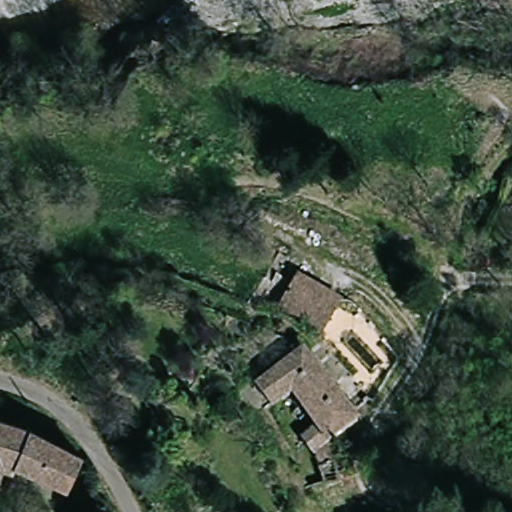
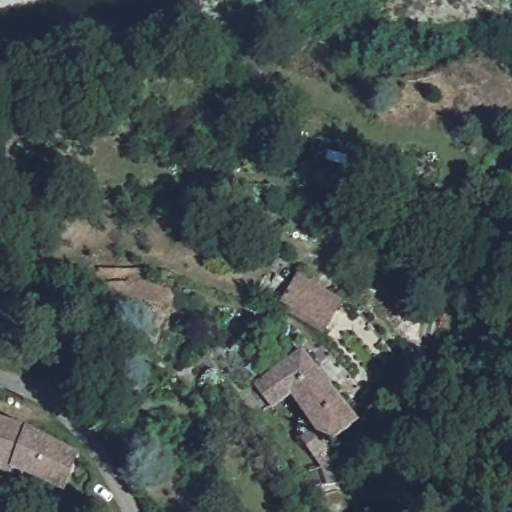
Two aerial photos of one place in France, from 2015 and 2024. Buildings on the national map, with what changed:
unchanged [(290,277),(303,294),(310,287),(343,325),(316,348),(270,294),(290,277)]
unchanged [(320,373),(358,425),(331,443),(336,482),(325,483),(302,434),(317,425),(295,391),(269,410),(255,387),(303,350),(320,373)]
unchanged [(0,463),(0,417),(17,423),(75,451),(63,483),(0,463)]

